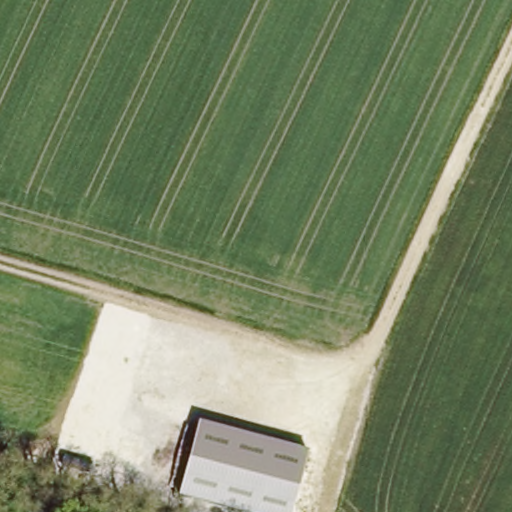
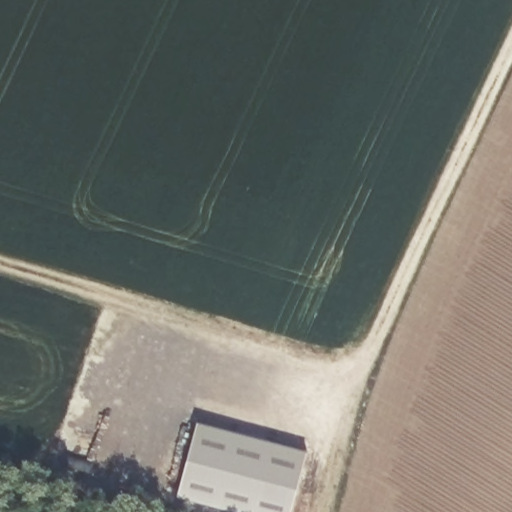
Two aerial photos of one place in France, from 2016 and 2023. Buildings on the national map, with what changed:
unchanged [(291,512),(237,512),(177,494),(196,421),(307,452),(291,512)]

